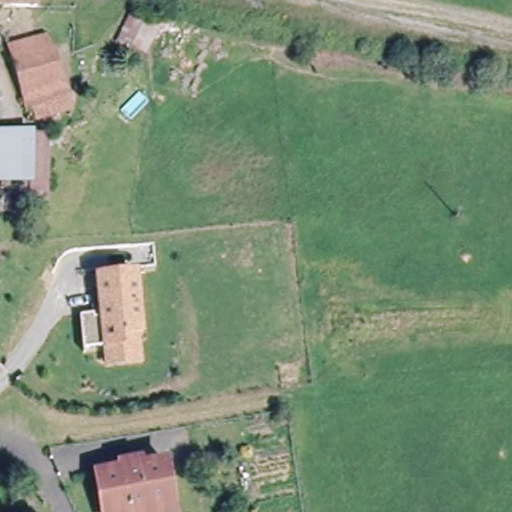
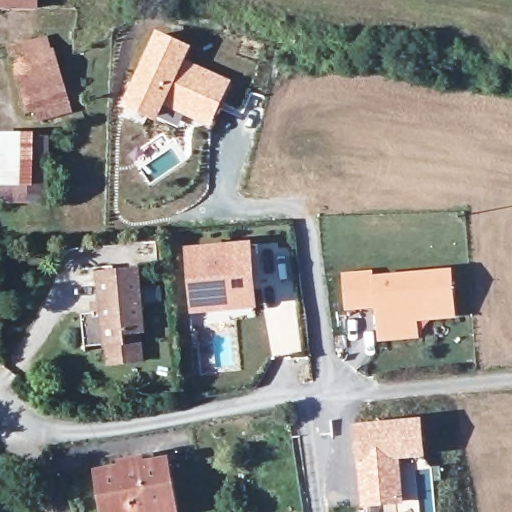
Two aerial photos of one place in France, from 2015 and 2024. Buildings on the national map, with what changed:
unchanged [(0,7),(0,0),(39,0),(39,7),(0,7)]
unchanged [(131,15),(157,28),(145,54),(119,41),(131,15)]
new [(121,105),(155,29),(192,46),(185,61),(232,80),(211,128),(184,116),(179,129),(159,119),(157,123),(121,105)]
unchanged [(12,54),(33,47),(29,35),(42,31),(47,43),(50,42),(67,95),(29,106),(12,54)]
unchanged [(0,184),(0,133),(33,133),(33,137),(48,136),(47,184),(47,202),(1,203),(0,184)]
new [(257,308),(191,313),(186,247),(251,242),(257,308)]
unchanged [(85,346),(82,314),(95,312),(95,316),(104,315),(99,273),(137,269),(143,330),(139,330),(142,359),(108,363),(106,344),(85,346)]
new [(372,270),(373,275),(452,269),(457,317),(419,321),(419,338),(377,342),(374,307),(344,311),(342,273),(372,270)]
new [(422,416),(426,457),(402,459),(403,471),(417,470),(418,499),(397,504),(398,512),(363,512),(363,509),(360,509),(351,424),(422,416)]
unchanged [(158,512),(129,512),(128,510),(116,512),(103,512),(95,468),(120,464),(118,457),(137,454),(138,461),(164,456),(170,498),(172,509),(158,512)]

